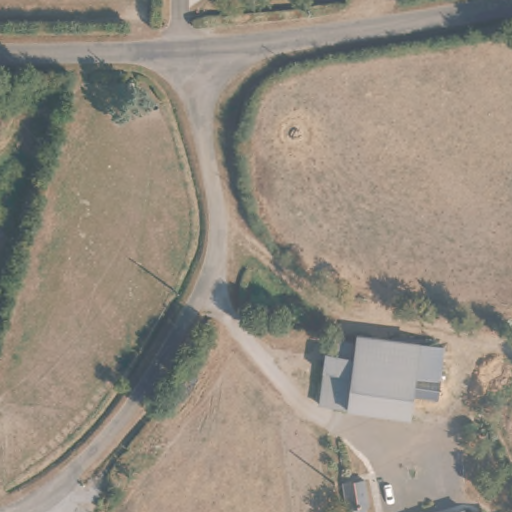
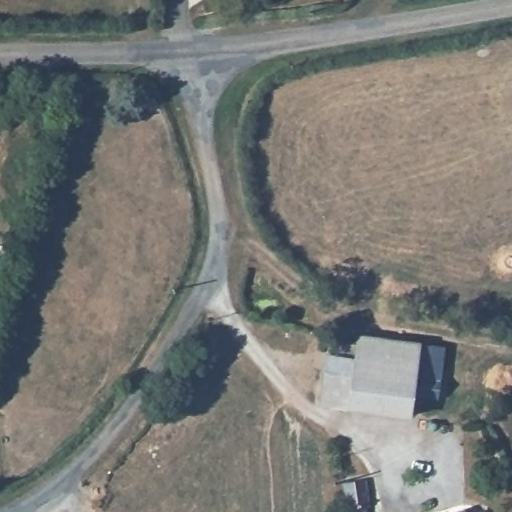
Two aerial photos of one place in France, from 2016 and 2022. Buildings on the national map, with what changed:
unchanged [(412,370),(348,368),(348,358),(319,357),(320,341),(349,342),(349,336),(413,338),(412,370)]
unchanged [(412,373),(439,374),(439,387),(438,396),(411,395),(410,414),(318,410),(319,372),(348,373),(348,368),(412,370),(412,373)]
unchanged [(365,512),(348,512),(346,484),(363,483),(365,512)]
unchanged [(467,512),(448,512),(465,508),(467,512)]
unchanged [(482,512),(478,512),(482,511),(482,512)]

